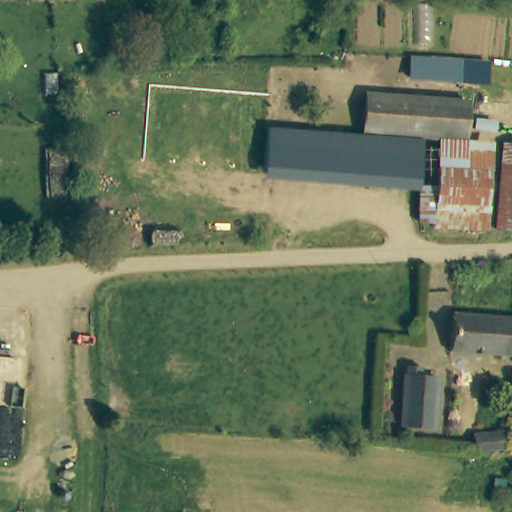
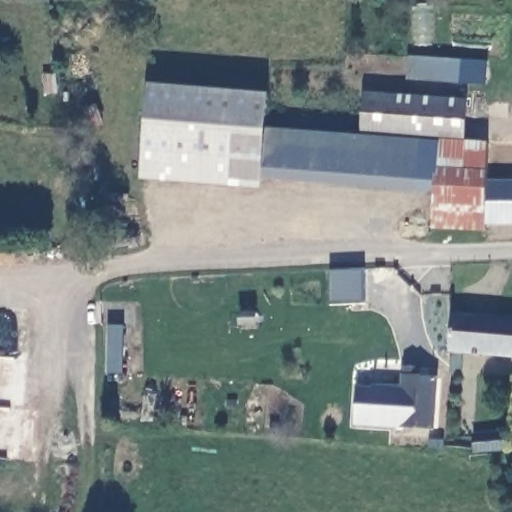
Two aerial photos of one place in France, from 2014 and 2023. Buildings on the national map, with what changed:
unchanged [(445,64),(443,89),(413,87),(415,77),(400,76),(400,61),(416,61),(421,62),(445,64)]
new [(261,189),(142,179),(150,85),(270,93),(269,127),(265,127),(261,179),(261,189)]
unchanged [(415,138),(356,132),(360,89),(465,98),(462,142),(442,140),(415,138)]
unchanged [(356,132),(415,138),(412,190),(261,179),(265,127),(356,132)]
unchanged [(435,224),(410,222),(412,190),(415,138),(442,140),(435,224)]
unchanged [(435,224),(442,140),(462,142),(494,144),(487,228),(435,224)]
unchanged [(512,226),(502,225),(510,142),(512,142),(512,226)]
unchanged [(460,313),(512,317),(512,356),(462,352),(457,352),(460,313)]
unchanged [(436,383),(432,432),(402,431),(407,367),(422,368),(422,382),(436,383)]
unchanged [(471,437),(500,434),(501,451),(488,452),(472,453),(471,437)]
demolished [(512,468),(512,497),(508,496),(512,468)]

